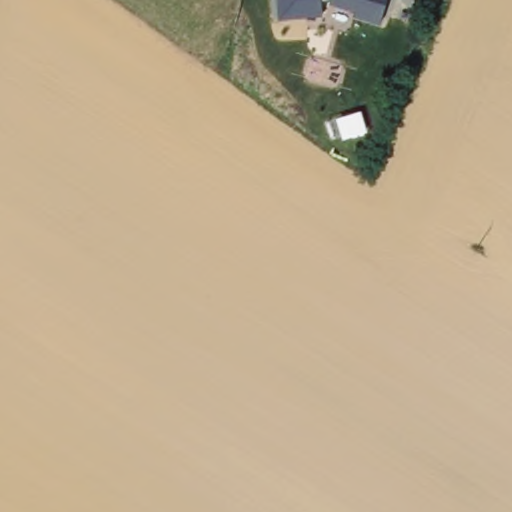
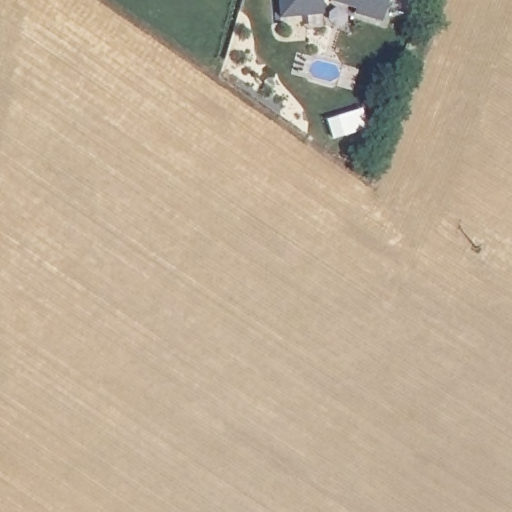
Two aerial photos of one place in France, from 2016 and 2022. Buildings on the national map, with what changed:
unchanged [(323,15),(281,19),(279,0),(322,0),(323,15)]
unchanged [(353,14),(355,9),(331,0),(388,0),(382,22),(353,14)]

